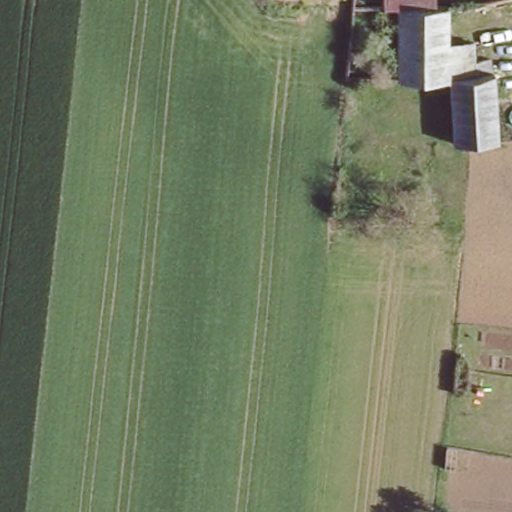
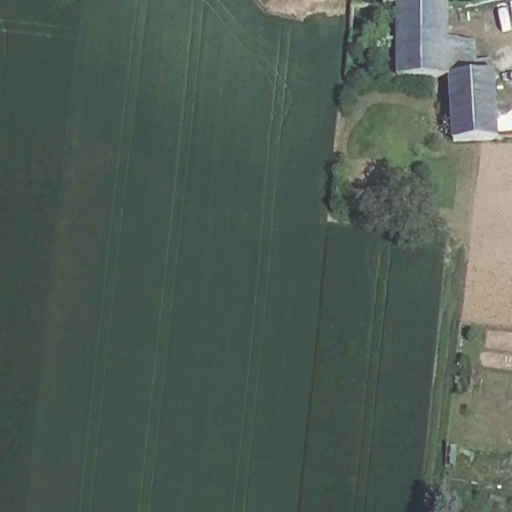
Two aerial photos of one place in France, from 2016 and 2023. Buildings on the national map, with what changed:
unchanged [(382,0),(437,0),(437,5),(401,5),(382,6),(382,0)]
unchanged [(437,5),(450,5),(450,44),(475,45),(475,77),(449,76),(401,75),(401,5),(437,5)]
unchanged [(475,77),(495,74),(497,139),(473,141),(454,142),(449,76),(475,77)]

